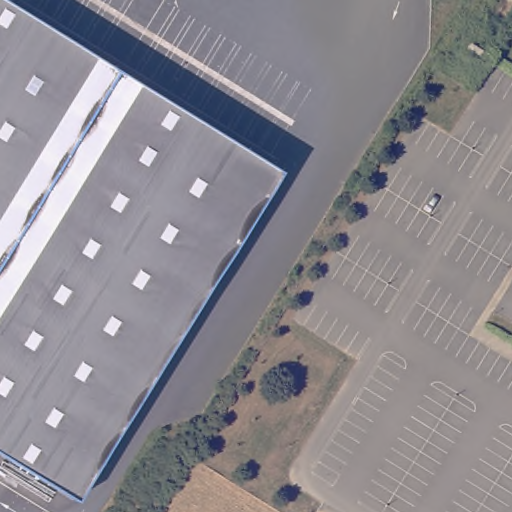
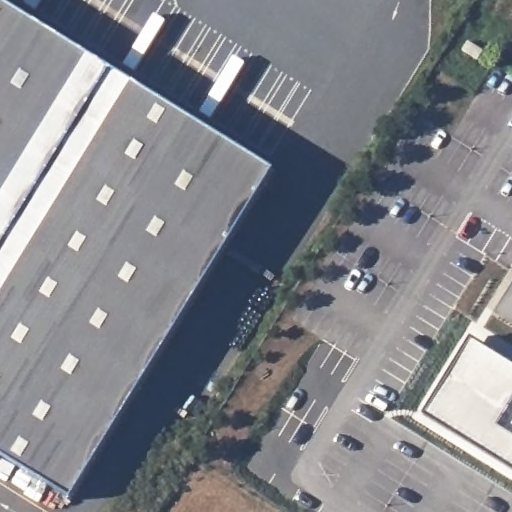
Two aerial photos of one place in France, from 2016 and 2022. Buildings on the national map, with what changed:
unchanged [(72,499),(0,455),(0,0),(276,171),(72,499)]
unchanged [(468,40),(483,50),(478,59),(462,49),(468,40)]
new [(471,338),(512,363),(512,468),(423,412),(471,338)]

